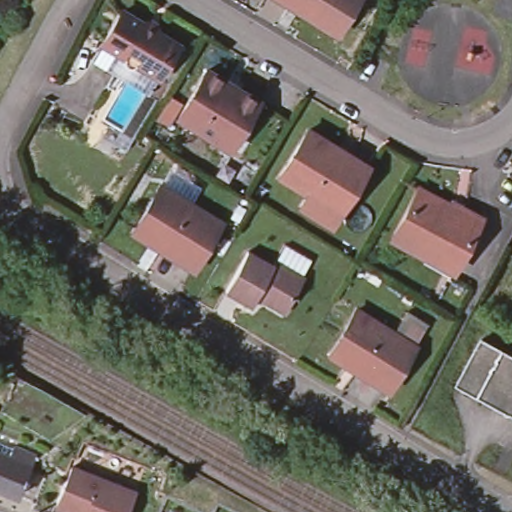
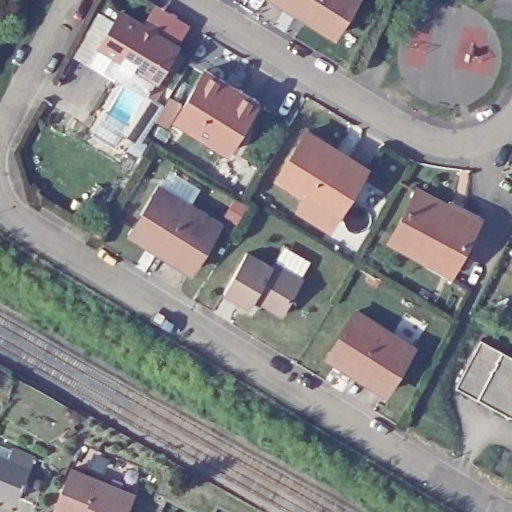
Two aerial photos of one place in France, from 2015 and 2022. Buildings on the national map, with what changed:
unchanged [(305,12),(285,0),(360,0),(340,34),(305,12)]
unchanged [(127,81),(114,74),(93,61),(103,44),(122,11),(143,24),(145,20),(152,20),(157,23),(158,29),(157,32),(177,45),(158,77),(148,94),(127,81)]
unchanged [(183,108),(205,71),(225,82),(257,101),(253,106),(228,149),(194,128),(177,118),(183,108)]
unchanged [(319,210),(305,201),(312,188),(285,171),(312,126),(342,145),(340,149),(369,166),(343,207),(336,220),(319,210)]
unchanged [(160,183),(221,220),(193,267),(162,248),(132,230),(135,225),(160,183)]
unchanged [(418,240),(414,248),(393,237),(418,187),(451,204),(459,208),(478,217),(457,259),(452,268),(427,254),(430,246),(418,240)]
unchanged [(274,264),(277,260),(307,277),(287,312),(259,296),(254,305),(227,289),(250,250),(274,264)]
unchanged [(370,379),(329,352),(358,308),(415,347),(391,383),(387,390),(370,379)]
unchanged [(512,353),(512,412),(460,384),(483,338),(512,353)]
unchanged [(18,494),(0,486),(0,460),(27,472),(18,494)]
unchanged [(56,505),(72,469),(137,493),(129,512),(70,512),(56,505)]

